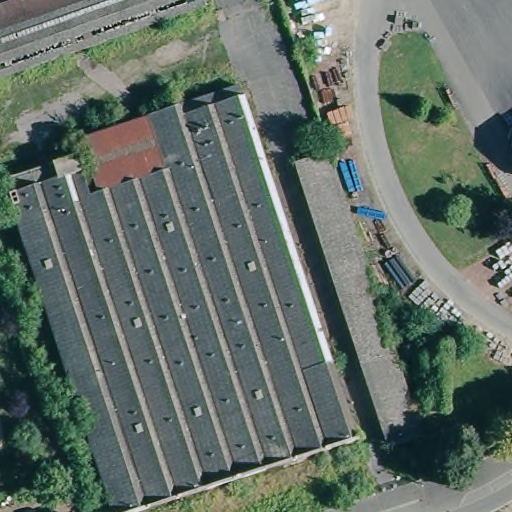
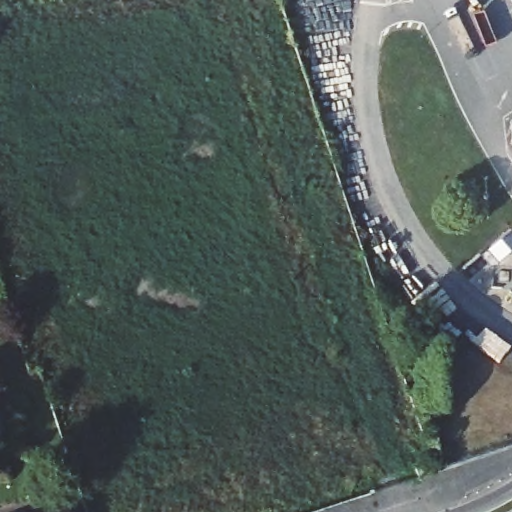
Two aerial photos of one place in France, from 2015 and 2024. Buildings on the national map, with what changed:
demolished [(92,0),(0,33),(0,8),(23,0),(92,0)]
demolished [(0,81),(0,33),(92,0),(202,0),(205,7),(0,81)]
demolished [(209,108),(245,95),(360,437),(134,512),(116,512),(4,179),(76,154),(82,172),(89,169),(80,139),(206,96),(209,108)]
demolished [(387,438),(290,154),(323,143),(324,146),(417,427),(387,438)]
demolished [(438,333),(440,404),(416,404),(414,333),(438,333)]

